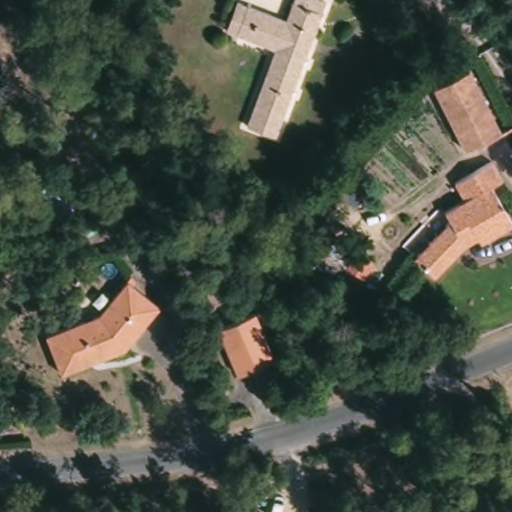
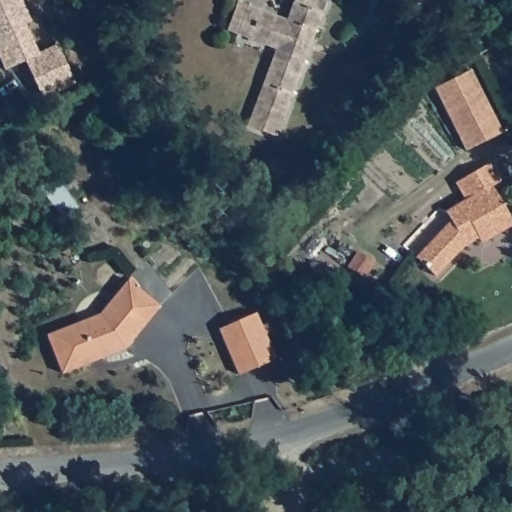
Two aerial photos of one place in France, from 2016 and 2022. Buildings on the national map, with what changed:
new [(0,60),(0,0),(21,0),(30,20),(23,22),(37,53),(56,45),(73,85),(41,97),(24,59),(3,67),(0,60)]
unchanged [(285,111),(256,101),(277,45),(227,27),(237,0),(242,0),(288,16),(294,0),(326,0),(285,111)]
unchanged [(437,85),(463,71),(472,66),(504,129),(495,134),(468,147),(437,85)]
unchanged [(475,233),(462,239),(466,247),(429,278),(411,257),(453,222),(447,211),(464,202),(454,183),(495,162),(503,179),(493,185),(512,223),(512,230),(480,245),(475,233)]
unchanged [(128,337),(70,371),(49,335),(99,307),(122,269),(157,290),(128,337)]
unchanged [(242,375),(223,328),(260,313),(279,359),(242,375)]

